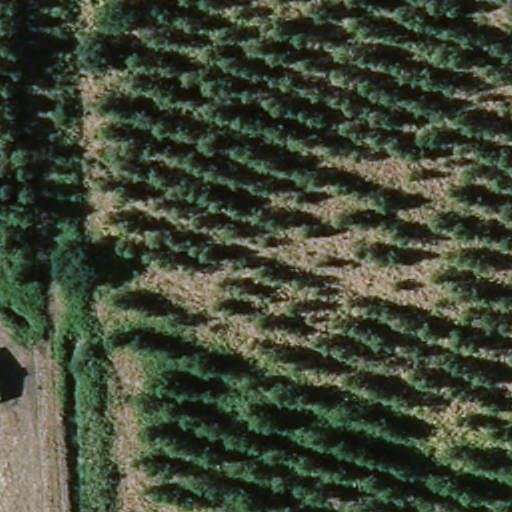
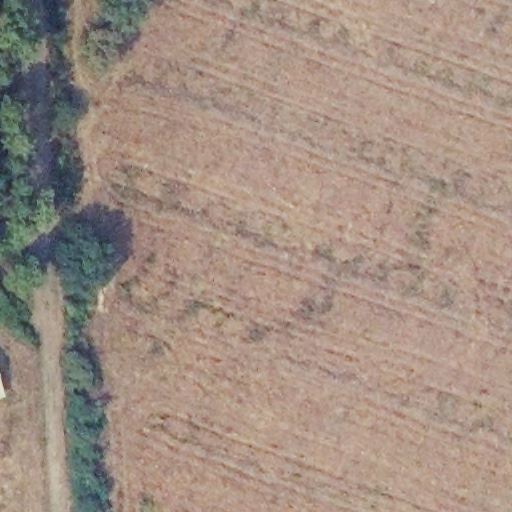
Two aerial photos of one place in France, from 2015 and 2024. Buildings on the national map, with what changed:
unchanged [(3,396),(0,397),(0,387),(3,396)]

